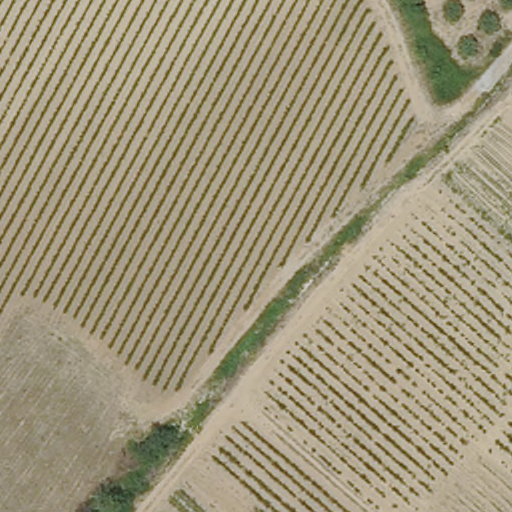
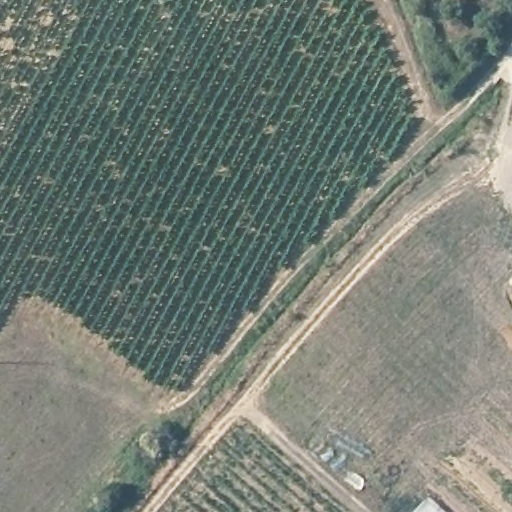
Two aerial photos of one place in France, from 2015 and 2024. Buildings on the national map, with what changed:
new [(431,498),(447,512),(418,512),(431,498)]

